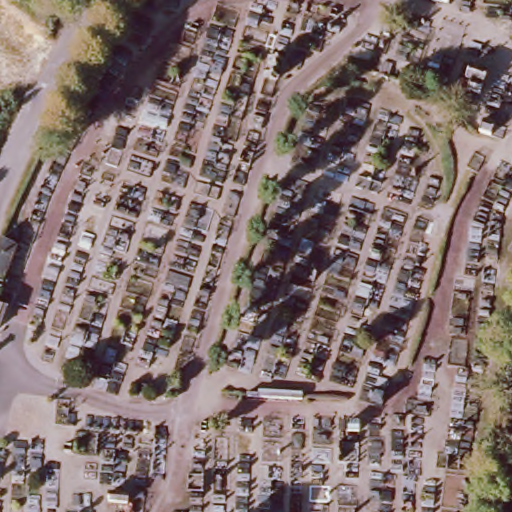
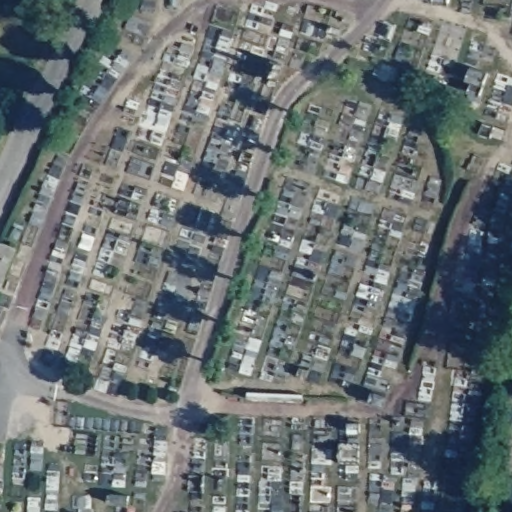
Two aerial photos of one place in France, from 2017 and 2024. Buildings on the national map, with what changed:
unchanged [(3,308),(0,314),(0,307),(3,308)]

